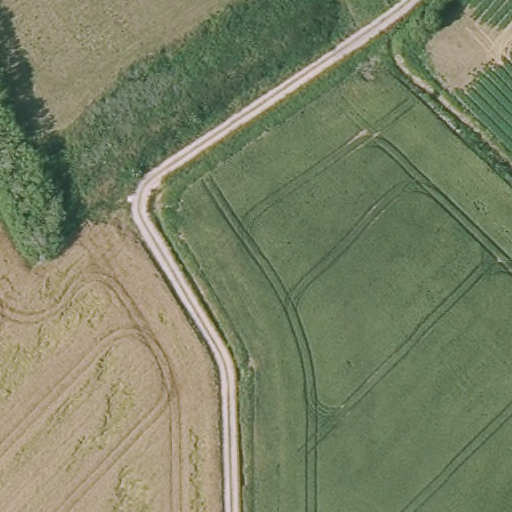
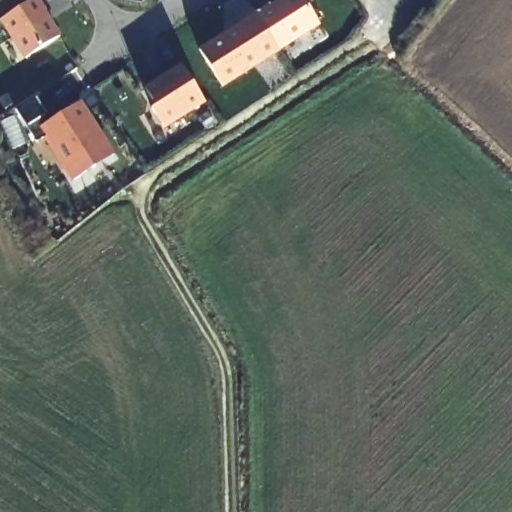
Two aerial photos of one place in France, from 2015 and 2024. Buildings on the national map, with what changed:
new [(47,10),(45,12),(60,37),(15,66),(0,45),(14,36),(2,20),(33,0),(40,0),(47,10)]
new [(283,0),(302,0),(317,25),(277,52),(255,15),(270,5),(271,7),(283,0)]
new [(277,52),(220,87),(198,50),(255,15),(277,52)]
new [(202,102),(162,128),(150,109),(151,101),(144,89),(167,74),(165,71),(178,63),(202,102)]
new [(19,110),(44,95),(60,121),(68,116),(82,107),(85,110),(115,158),(97,169),(99,171),(78,184),(50,140),(40,146),(19,110)]

